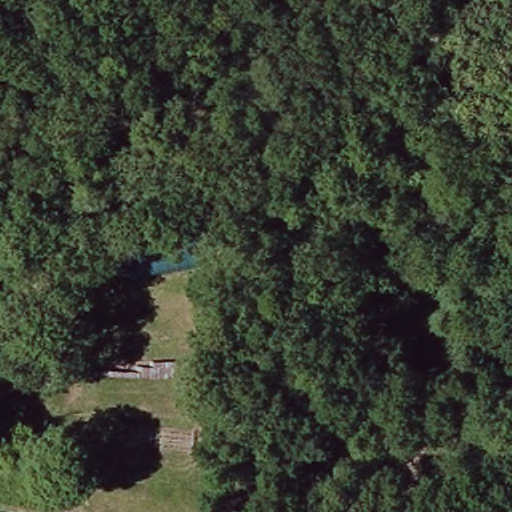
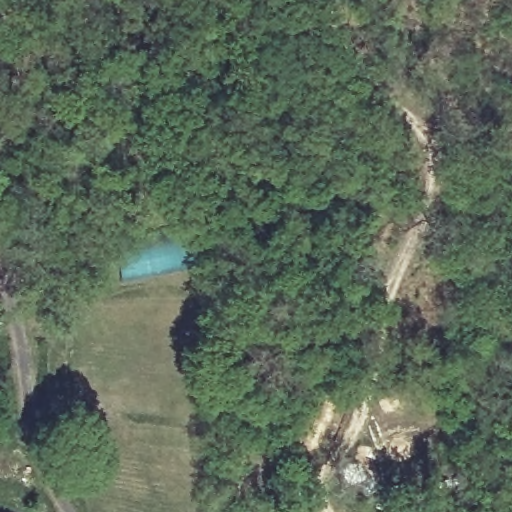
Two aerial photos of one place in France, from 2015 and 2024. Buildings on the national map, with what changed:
unchanged [(113,248),(200,234),(205,265),(117,278),(113,248)]

